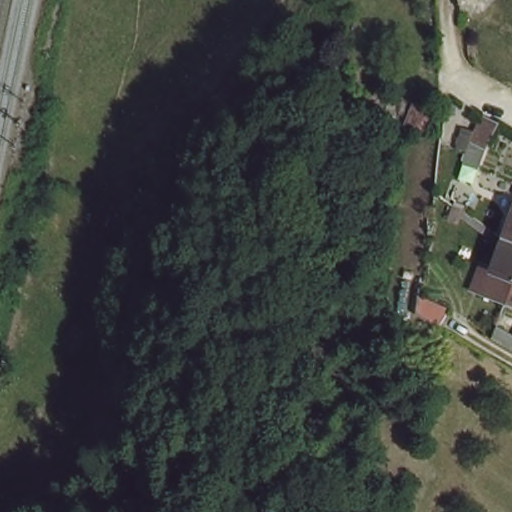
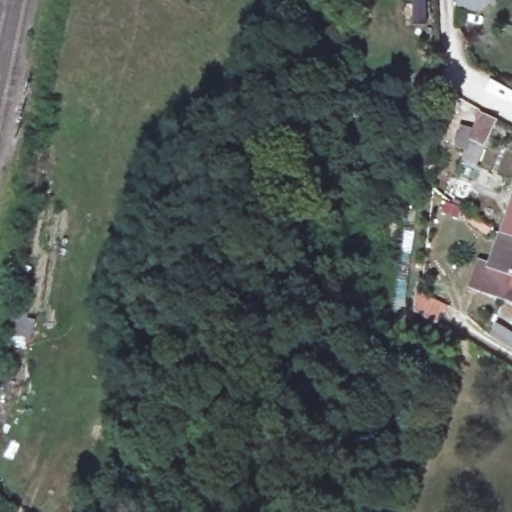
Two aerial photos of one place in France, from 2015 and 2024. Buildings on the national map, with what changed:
unchanged [(482,18),(457,5),(457,0),(498,0),(498,4),(482,18)]
unchanged [(478,115),(492,123),(480,144),(470,139),(478,115)]
unchanged [(512,202),(512,239),(496,234),(496,233),(506,199),(512,202)]
unchanged [(495,269),(486,264),(496,233),(496,234),(512,239),(512,268),(507,285),(491,280),(495,269)]
unchanged [(512,268),(512,287),(507,285),(512,268)]
unchanged [(440,320),(407,303),(413,282),(447,299),(440,320)]
unchanged [(512,287),(512,300),(508,299),(512,287)]
unchanged [(512,335),(512,349),(505,346),(512,335)]

